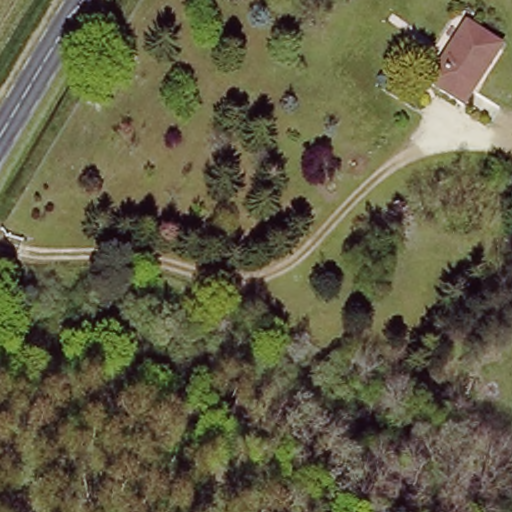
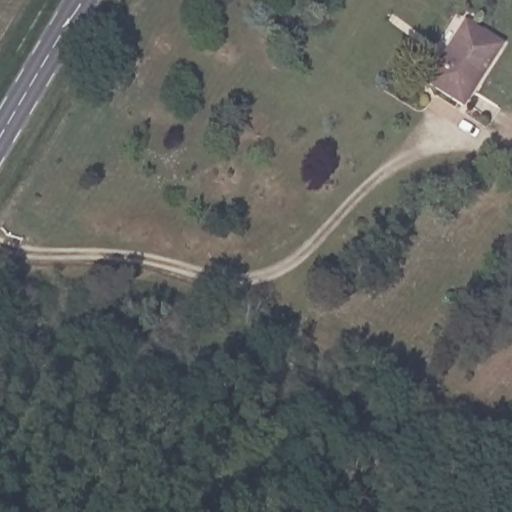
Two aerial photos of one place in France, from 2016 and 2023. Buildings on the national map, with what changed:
unchanged [(501,53),(465,108),(431,86),(467,31),(501,53)]

